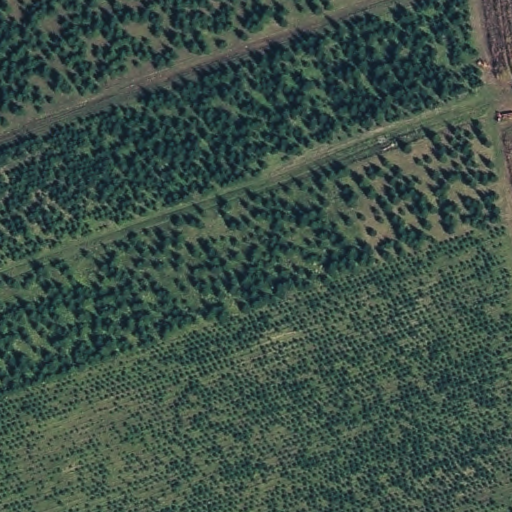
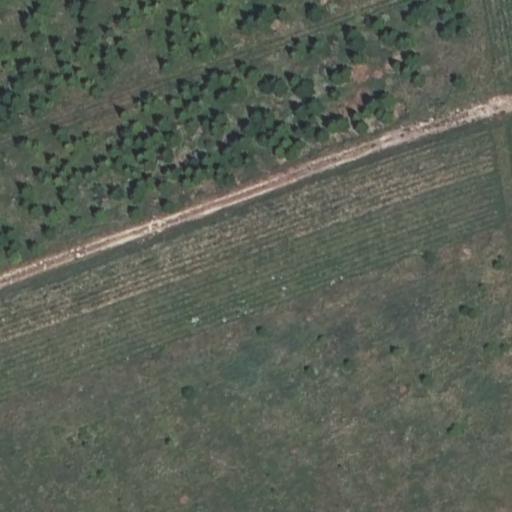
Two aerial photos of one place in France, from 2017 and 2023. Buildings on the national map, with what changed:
[]

